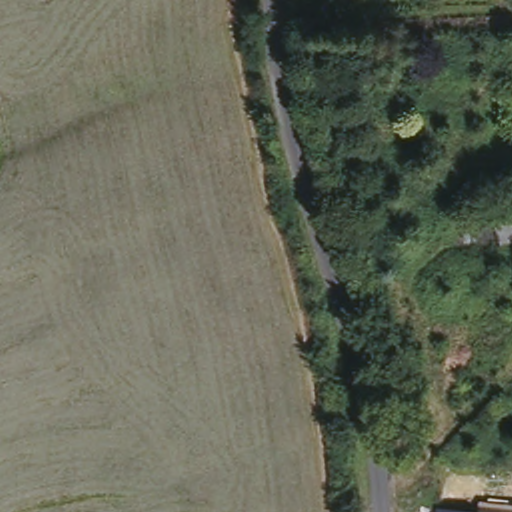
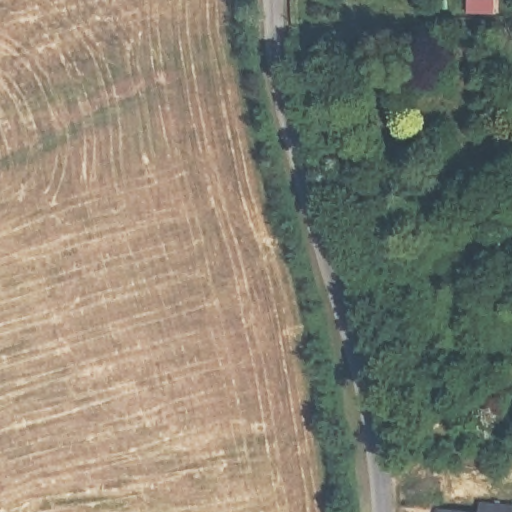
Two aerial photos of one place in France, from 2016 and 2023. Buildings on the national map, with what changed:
unchanged [(512,209),(512,245),(495,250),(485,217),(512,209)]
unchanged [(512,511),(512,512),(479,512),(479,510),(512,511)]

